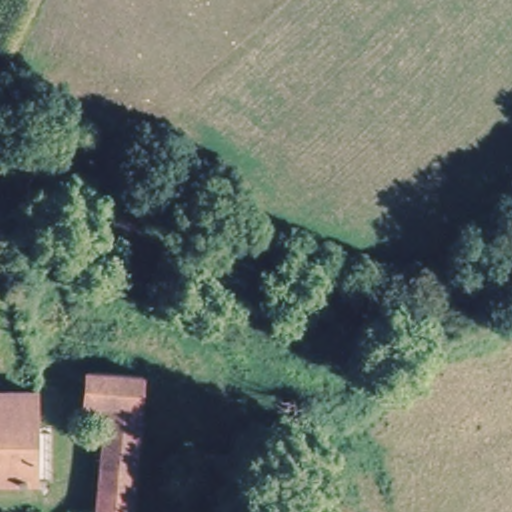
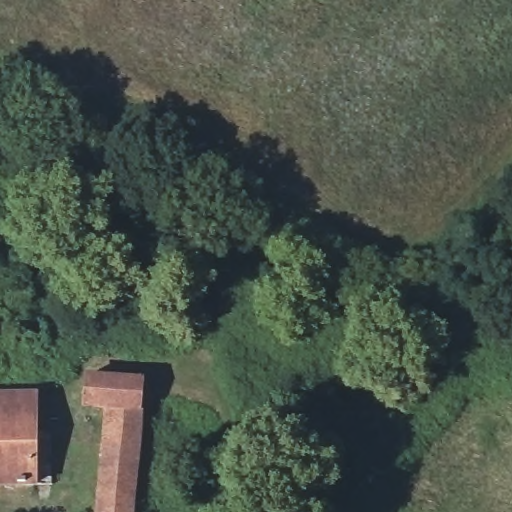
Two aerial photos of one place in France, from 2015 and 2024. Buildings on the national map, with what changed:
unchanged [(139,371),(140,405),(104,406),(86,406),(83,371),(139,371)]
unchanged [(36,480),(0,481),(0,384),(27,382),(36,480)]
unchanged [(140,405),(137,466),(103,465),(104,406),(140,405)]
unchanged [(103,465),(137,466),(134,511),(134,512),(101,512),(103,465)]

